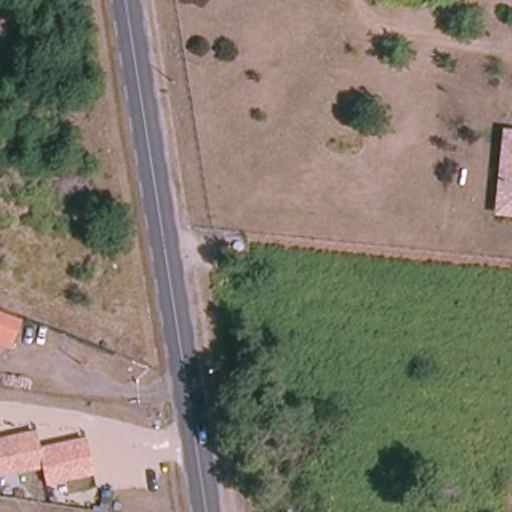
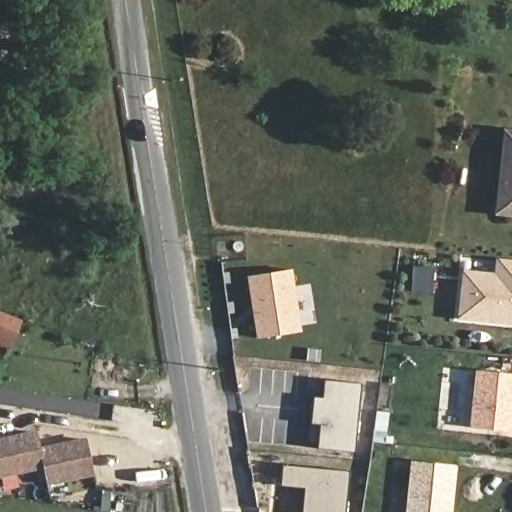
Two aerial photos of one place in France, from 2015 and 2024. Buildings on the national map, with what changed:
unchanged [(498,214),(505,159),(509,130),(512,131),(512,215),(498,214)]
new [(453,317),(458,271),(490,275),(491,258),(512,260),(512,323),(453,317)]
new [(252,337),(244,275),(286,269),(294,332),(252,337)]
unchanged [(10,349),(0,345),(0,320),(19,327),(10,349)]
new [(471,372),(512,376),(512,382),(507,434),(465,429),(471,372)]
new [(313,397),(322,398),(323,380),(360,383),(353,452),(316,449),(318,424),(310,424),(313,397)]
unchanged [(42,469),(0,479),(0,437),(37,429),(41,449),(84,439),(93,475),(46,486),(42,469)]
new [(408,463),(450,468),(446,512),(403,512),(408,463)]
new [(346,472),(344,512),(302,512),(303,487),(280,486),(282,465),(346,472)]

